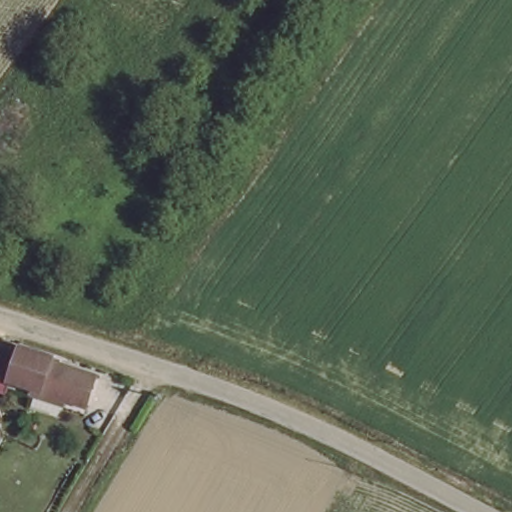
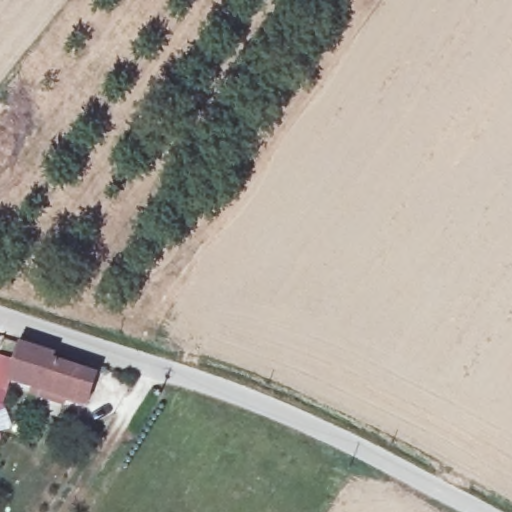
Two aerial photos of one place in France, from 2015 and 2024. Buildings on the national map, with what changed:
unchanged [(28,392),(33,382),(35,379),(12,373),(19,342),(52,351),(48,357),(94,370),(87,397),(66,391),(64,400),(28,392)]

